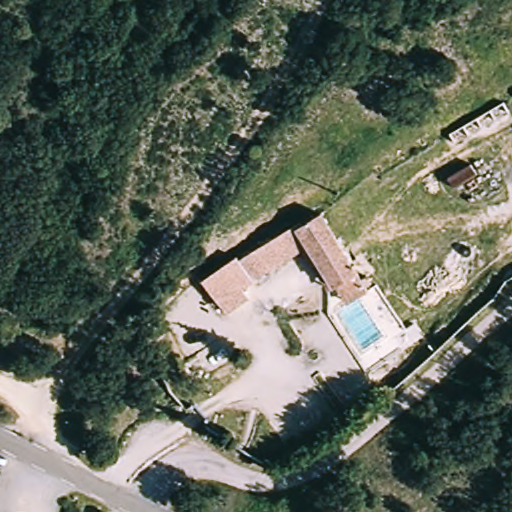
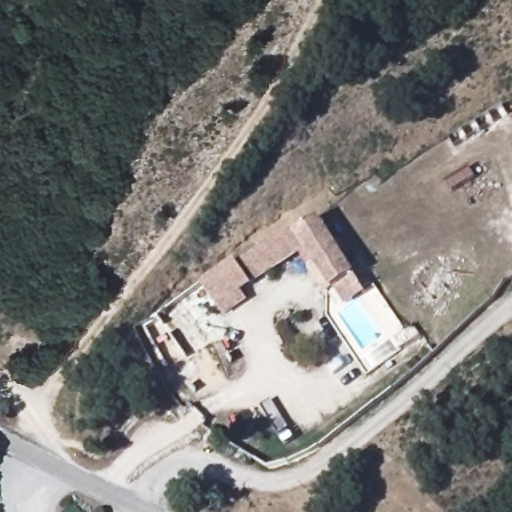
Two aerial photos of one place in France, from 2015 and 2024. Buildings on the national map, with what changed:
unchanged [(348,304),(334,283),(323,290),(301,254),(222,305),(201,280),(321,210),(360,270),(369,291),(348,304)]

